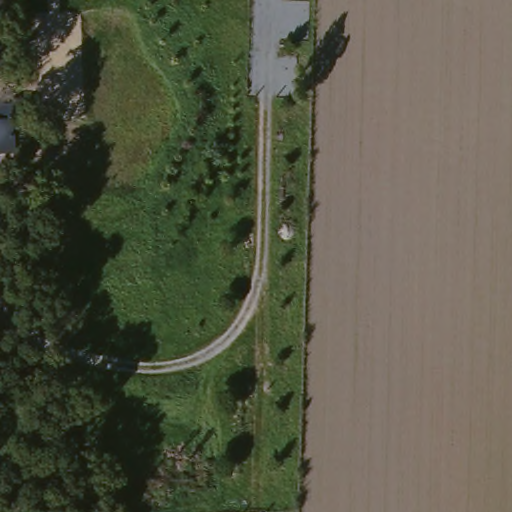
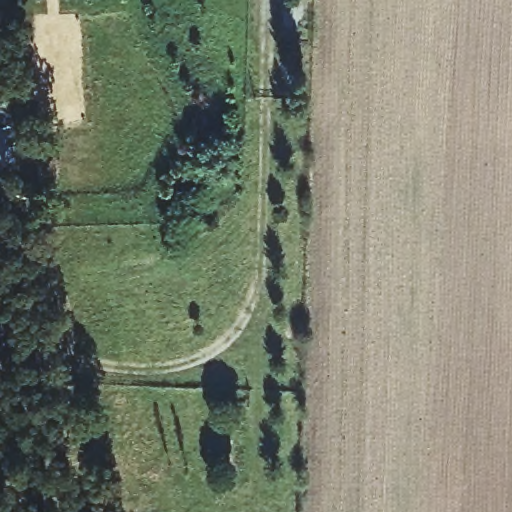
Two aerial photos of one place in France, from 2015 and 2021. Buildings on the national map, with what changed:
unchanged [(17,156),(0,157),(0,107),(15,107),(17,156)]

